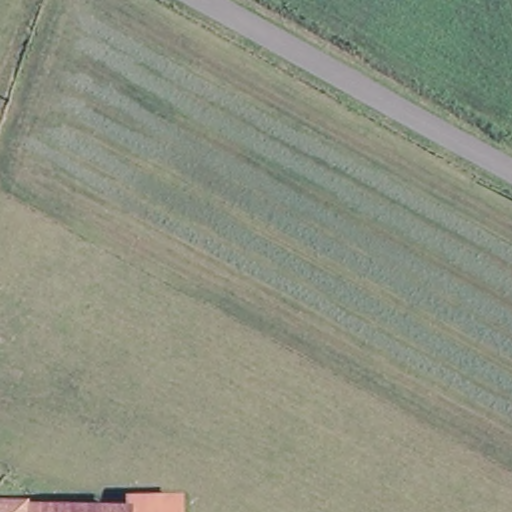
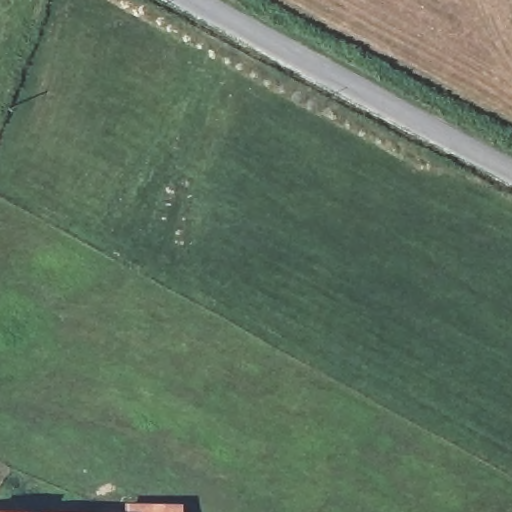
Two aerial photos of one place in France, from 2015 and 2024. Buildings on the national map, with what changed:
unchanged [(178,502),(178,512),(125,512),(126,500),(178,502)]
unchanged [(0,512),(0,508),(102,512),(0,512)]

